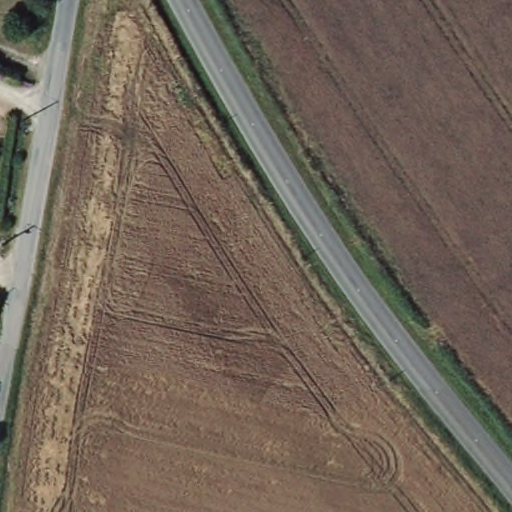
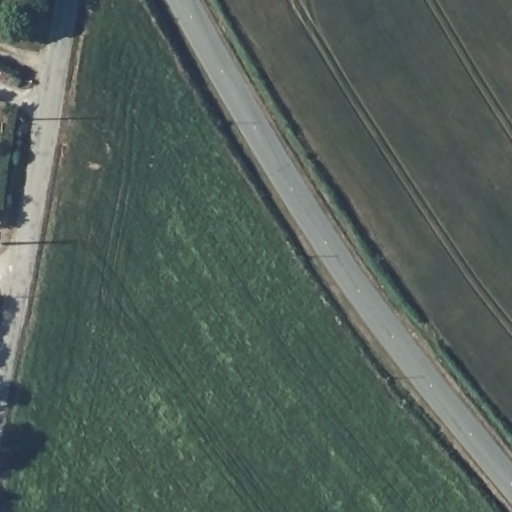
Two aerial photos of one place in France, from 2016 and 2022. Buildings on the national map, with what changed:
[]

